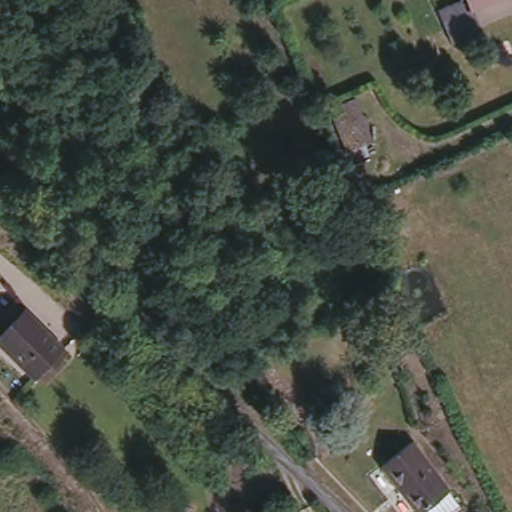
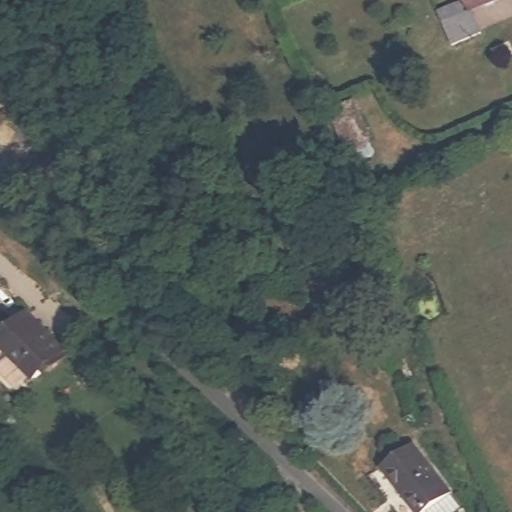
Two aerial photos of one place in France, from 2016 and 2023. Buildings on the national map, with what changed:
unchanged [(435,3),(440,0),(461,0),(462,3),(470,1),(479,21),(450,35),(435,3)]
unchanged [(328,111),(351,101),(368,142),(345,153),(328,111)]
unchanged [(0,341),(0,340),(27,311),(66,349),(36,377),(0,341)]
unchanged [(455,512),(432,512),(427,507),(420,512),(382,462),(411,439),(449,485),(464,505),(455,512)]

